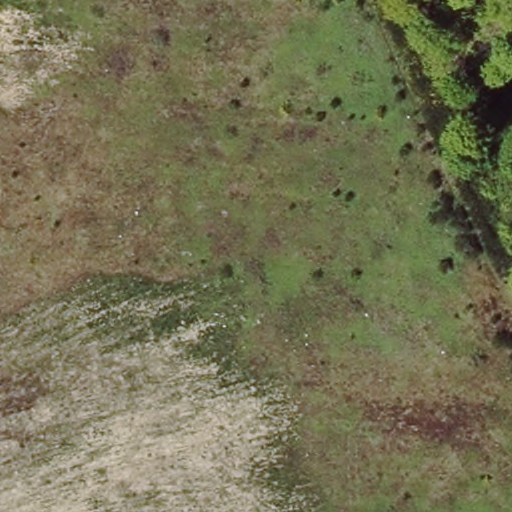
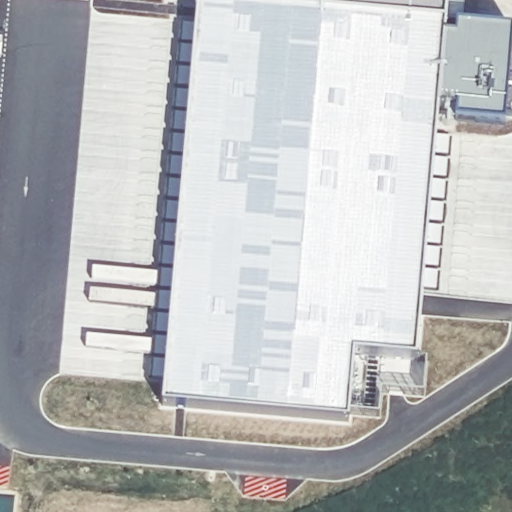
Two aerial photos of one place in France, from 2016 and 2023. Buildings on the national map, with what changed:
new [(512,31),(512,36),(502,132),(435,125),(412,357),(350,363),(346,424),(154,407),(192,0),(444,0),(441,27),(512,31)]
new [(264,0),(442,0),(441,16),(264,0)]

